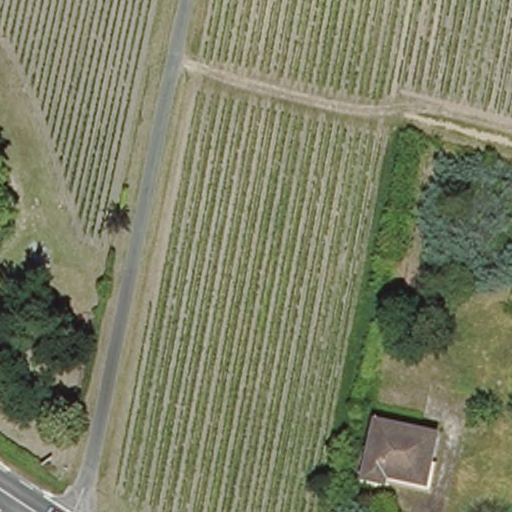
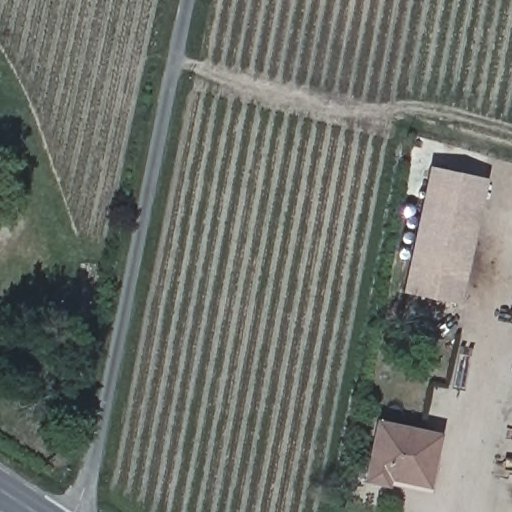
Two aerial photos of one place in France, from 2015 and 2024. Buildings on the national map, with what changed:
new [(413,236),(410,233),(428,166),(486,178),(458,305),(401,292),(413,236)]
demolished [(77,275),(87,293),(78,299),(70,288),(74,285),(71,279),(77,275)]
unchanged [(413,380),(410,394),(382,388),(385,374),(413,380)]
unchanged [(377,424),(437,437),(427,483),(388,475),(386,488),(352,481),(358,453),(371,455),(377,424)]

